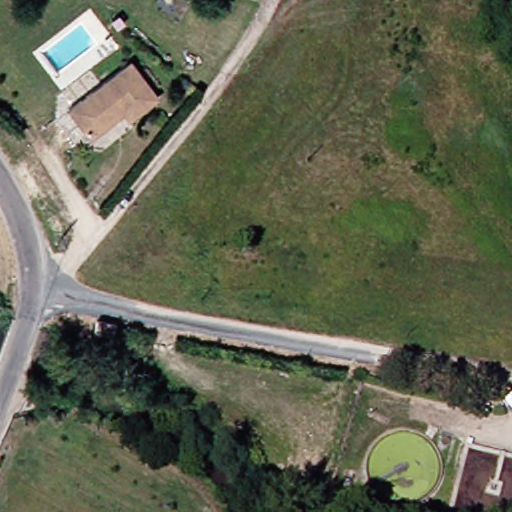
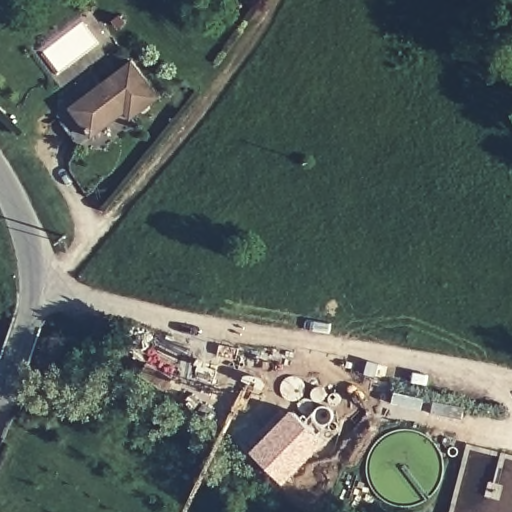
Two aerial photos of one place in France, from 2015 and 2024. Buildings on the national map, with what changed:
unchanged [(161,97),(134,118),(126,109),(95,134),(75,108),(135,63),(161,97)]
unchanged [(111,334),(90,330),(94,310),(115,314),(111,334)]
new [(253,449),(292,408),(326,440),(286,480),(253,449)]

